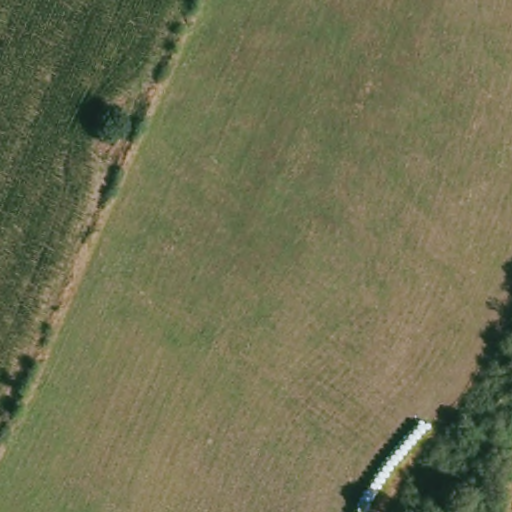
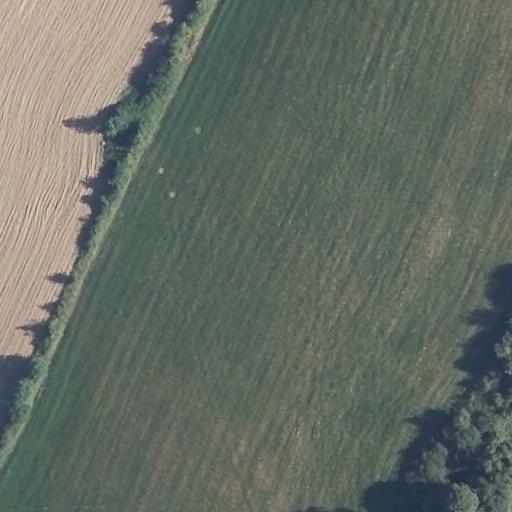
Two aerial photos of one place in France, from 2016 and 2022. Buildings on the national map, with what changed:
[]

